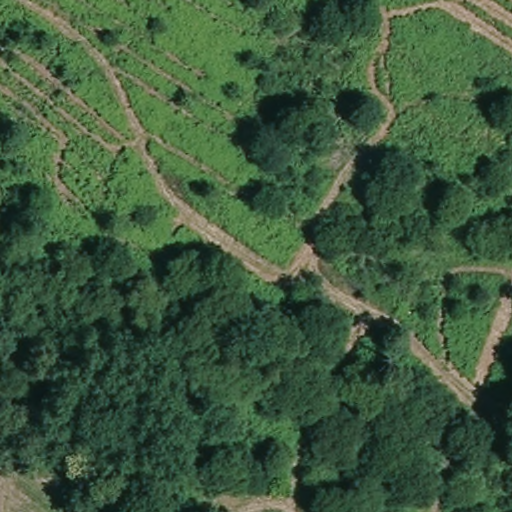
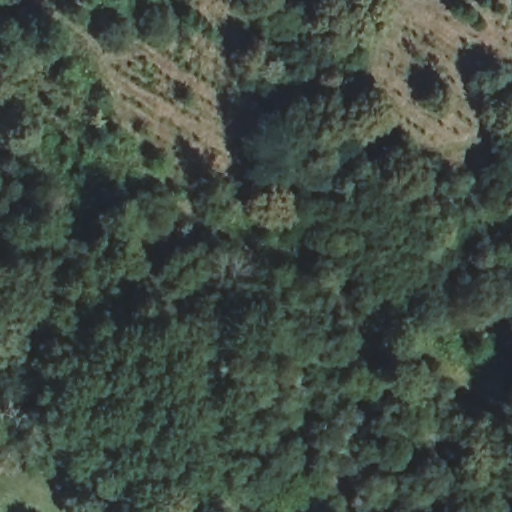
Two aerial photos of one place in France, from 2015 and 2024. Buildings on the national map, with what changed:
unchanged [(0,474),(0,465),(4,467),(0,474)]

